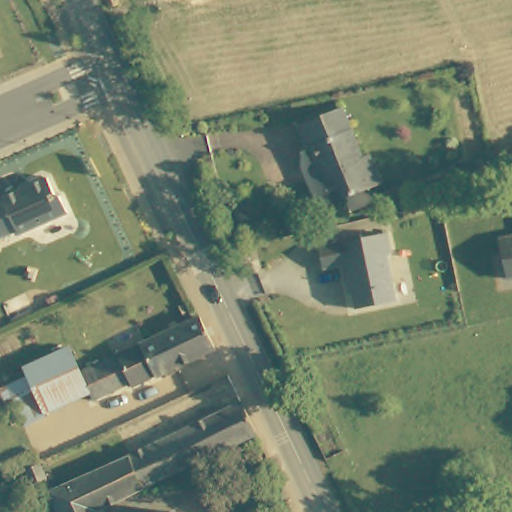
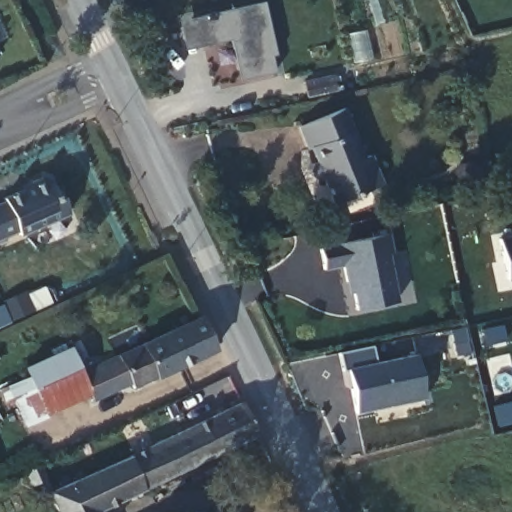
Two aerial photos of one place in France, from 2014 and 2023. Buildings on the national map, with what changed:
new [(275,54),(270,56),(274,73),(239,80),(229,40),(184,50),(178,20),(263,3),(275,54)]
unchanged [(0,61),(0,44),(6,58),(0,61)]
unchanged [(359,155),(367,153),(378,183),(329,200),(320,177),(317,178),(306,174),(304,168),(308,161),(313,159),(309,145),(305,147),(296,124),(341,106),(359,155)]
unchanged [(23,234),(0,244),(0,210),(10,205),(9,202),(34,190),(32,188),(48,180),(53,183),(61,199),(66,200),(73,217),(25,239),(23,234)]
unchanged [(390,258),(385,259),(395,307),(355,315),(349,288),(343,289),(339,271),(321,275),(316,253),(386,238),(390,258)]
unchanged [(507,284),(499,242),(512,239),(512,282),(507,284)]
unchanged [(198,319),(213,352),(155,380),(154,378),(131,389),(130,386),(91,404),(89,398),(78,375),(120,356),(198,319)]
new [(426,407),(406,410),(408,417),(376,424),(373,411),(353,414),(348,389),(358,388),(354,369),(341,371),(338,353),(372,346),(376,361),(418,353),(426,407)]
unchanged [(27,379),(24,372),(68,352),(78,375),(89,398),(46,419),(27,379)]
unchanged [(25,428),(12,401),(9,402),(4,404),(0,397),(0,392),(4,390),(27,379),(46,419),(25,428)]
unchanged [(128,454),(240,400),(255,433),(143,488),(128,454)]
unchanged [(95,512),(58,512),(49,493),(52,491),(128,454),(143,488),(95,512)]
unchanged [(38,490),(31,476),(26,465),(39,459),(39,460),(44,470),(51,484),(38,490)]

